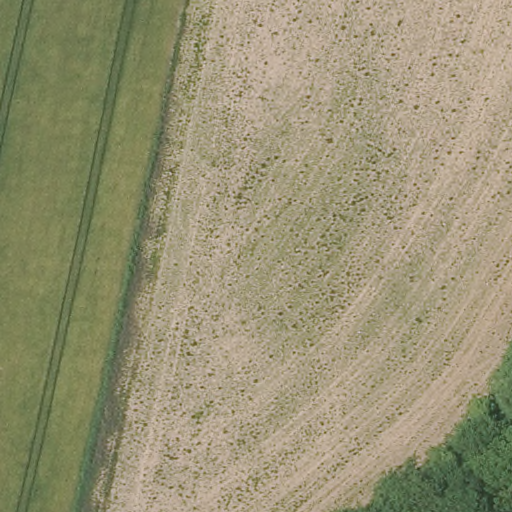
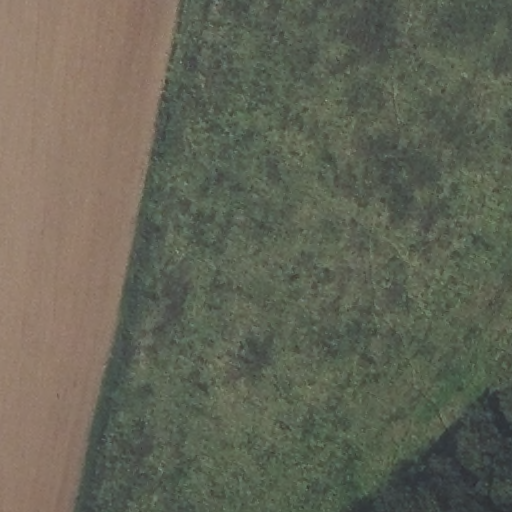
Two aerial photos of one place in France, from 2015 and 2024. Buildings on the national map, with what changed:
[]

